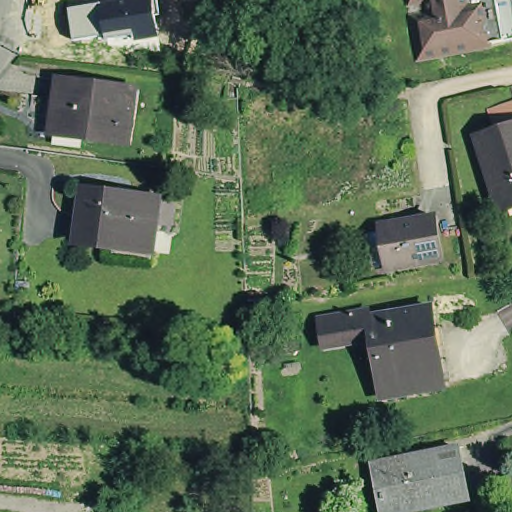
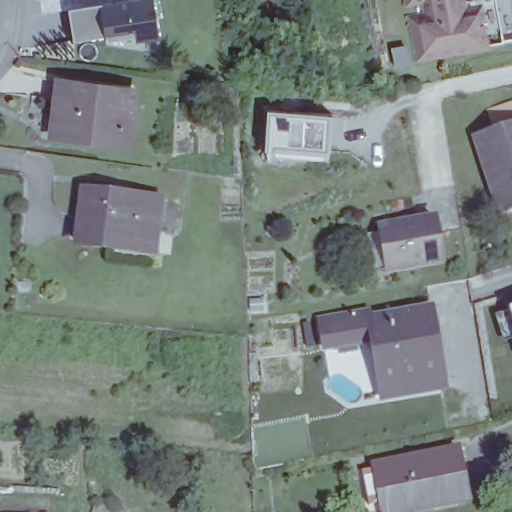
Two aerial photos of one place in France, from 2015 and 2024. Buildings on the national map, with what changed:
unchanged [(135,32),(75,41),(70,10),(131,0),(154,0),(160,38),(137,43),(135,32)]
unchanged [(415,62),(408,14),(430,10),(430,3),(407,6),(406,0),(512,0),(512,41),(415,62)]
unchanged [(61,84),(134,93),(127,145),(85,140),(53,136),(55,130),(61,84)]
new [(268,107),(333,112),(330,152),(265,147),(268,107)]
unchanged [(505,222),(482,145),(502,139),(497,119),(512,115),(512,220),(505,222)]
new [(325,151),(325,158),(268,154),(268,147),(325,151)]
unchanged [(115,258),(115,250),(80,245),(86,195),(162,204),(155,252),(154,262),(115,258)]
unchanged [(437,216),(443,260),(386,270),(378,226),(437,216)]
new [(512,300),(512,327),(505,302),(512,300)]
unchanged [(372,343),(320,351),(316,319),(372,307),(375,316),(438,308),(450,390),(378,400),(372,343)]
unchanged [(460,453),(467,482),(462,483),(466,503),(426,512),(382,512),(374,470),(460,453)]

